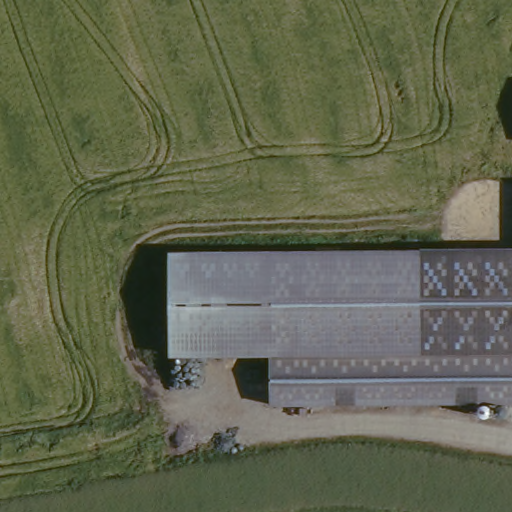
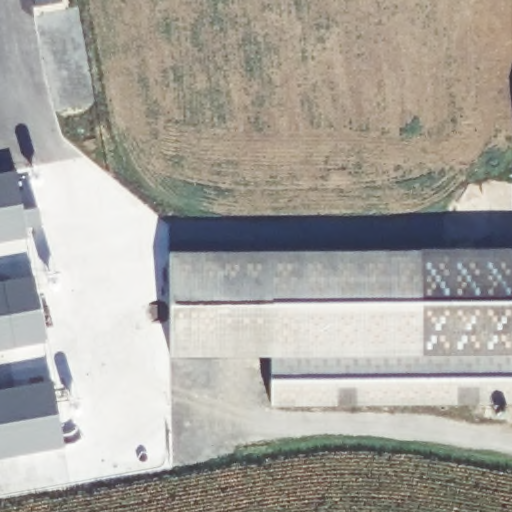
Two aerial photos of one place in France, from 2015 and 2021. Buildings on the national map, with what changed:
new [(35,9),(34,0),(61,0),(62,4),(35,9)]
new [(22,211),(38,209),(40,225),(25,228),(26,238),(0,242),(0,174),(15,172),(22,211)]
unchanged [(512,249),(512,358),(382,360),(379,255),(512,249)]
unchanged [(382,360),(512,358),(512,414),(262,409),(262,365),(167,364),(166,255),(379,255),(382,360)]
new [(45,343),(0,351),(0,282),(33,277),(45,343)]
new [(63,448),(0,459),(0,391),(52,382),(63,448)]

